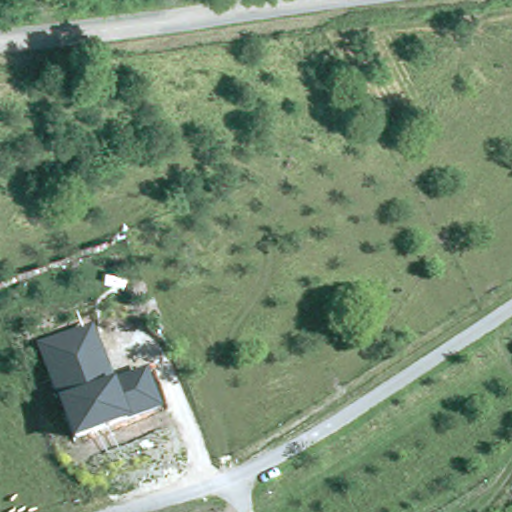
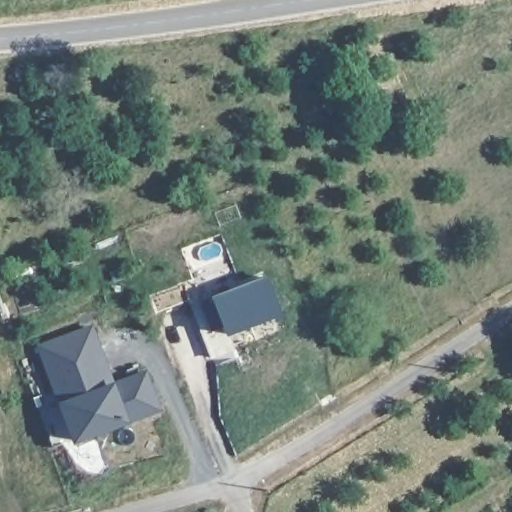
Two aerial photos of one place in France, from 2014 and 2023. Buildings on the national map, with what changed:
new [(191,304),(211,293),(266,272),(281,313),(226,333),(233,348),(211,357),(191,304)]
unchanged [(74,443),(56,400),(36,344),(93,324),(115,382),(147,370),(161,410),(74,443)]

